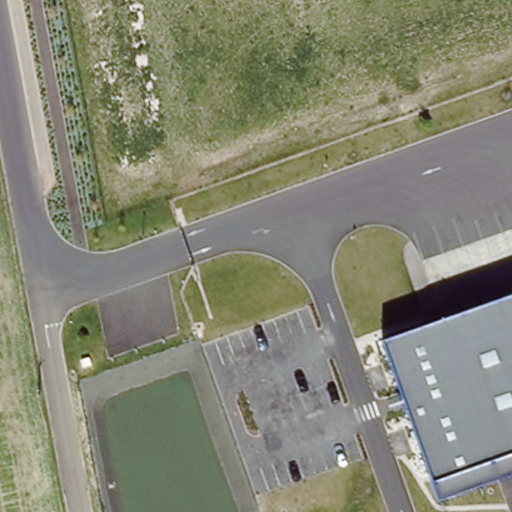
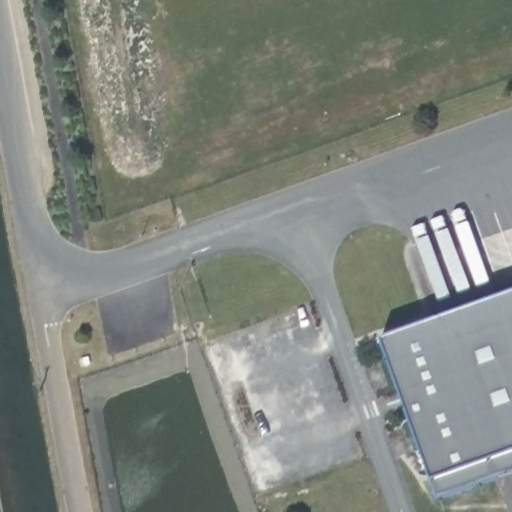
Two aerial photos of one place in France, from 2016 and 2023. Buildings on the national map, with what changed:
unchanged [(512,294),(512,472),(439,499),(431,483),(381,341),(512,294)]

